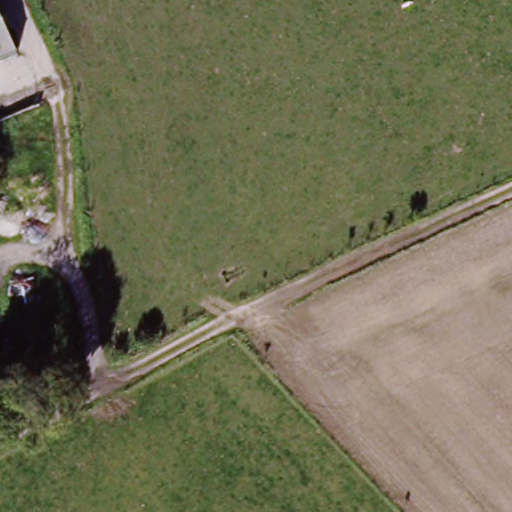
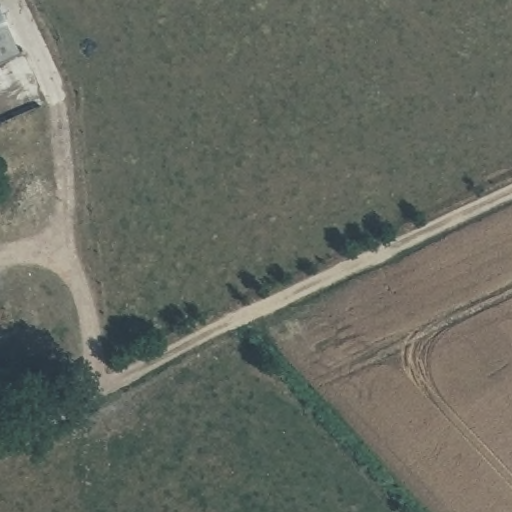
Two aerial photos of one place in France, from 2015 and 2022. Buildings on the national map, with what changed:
unchanged [(14,55),(0,62),(0,25),(14,55)]

